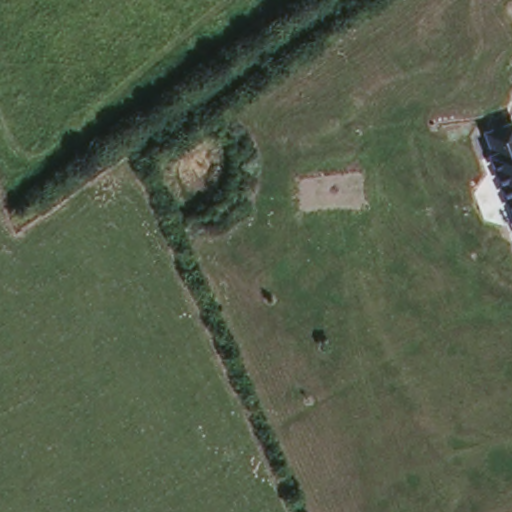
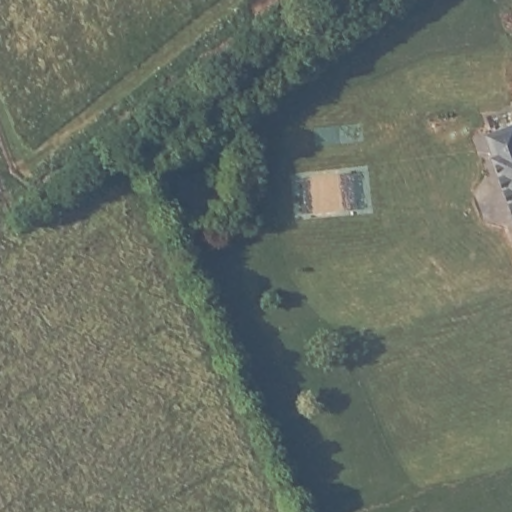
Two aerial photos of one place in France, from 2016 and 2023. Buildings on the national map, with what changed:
unchanged [(512,133),(512,217),(484,134),(510,126),(512,133)]

